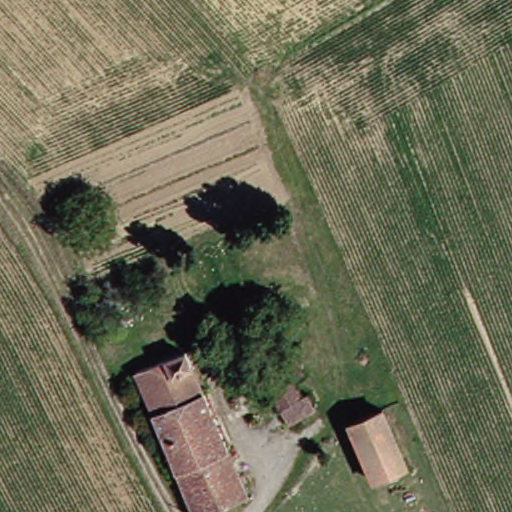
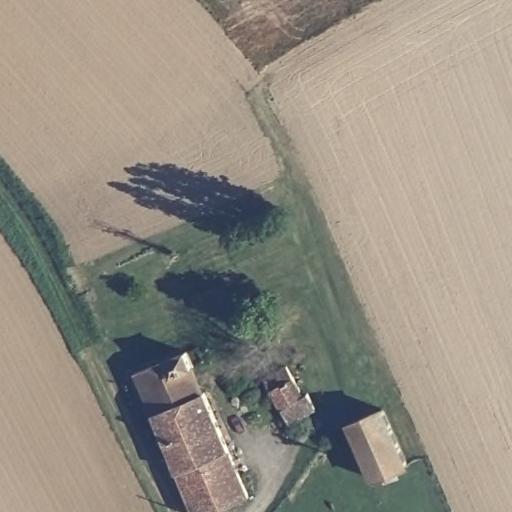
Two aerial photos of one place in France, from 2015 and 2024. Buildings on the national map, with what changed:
unchanged [(204,512),(188,512),(132,365),(184,350),(242,501),(204,512)]
unchanged [(292,381),(304,403),(281,421),(252,378),(272,362),(284,353),(294,368),(281,376),(286,385),(292,381)]
unchanged [(347,425),(377,408),(403,464),(370,479),(347,425)]

